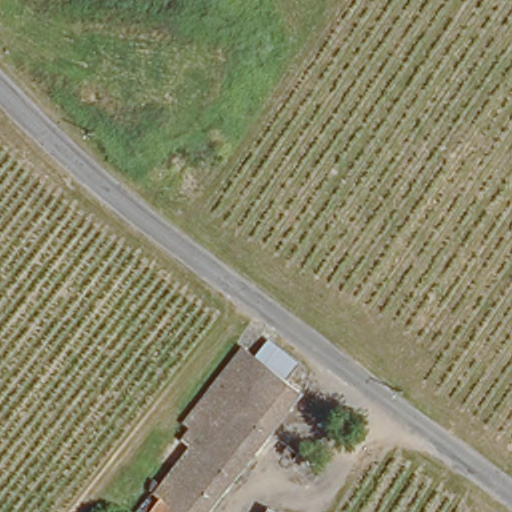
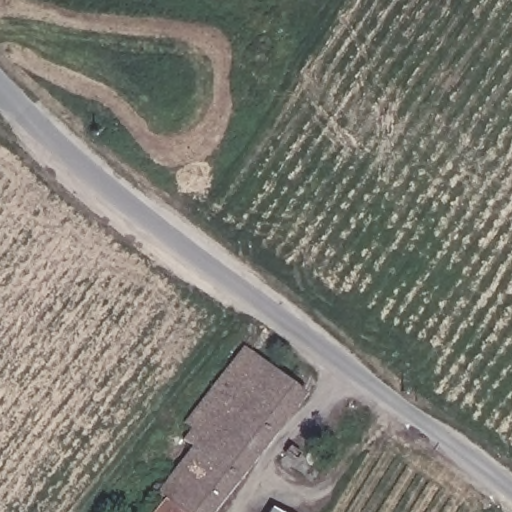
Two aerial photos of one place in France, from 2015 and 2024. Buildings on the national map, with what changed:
unchanged [(298,397),(207,512),(181,512),(141,485),(147,476),(153,479),(168,458),(172,461),(185,443),(175,437),(183,426),(179,423),(238,347),(250,357),(281,382),(298,397)]
unchanged [(134,512),(126,506),(141,485),(181,512),(134,512)]
unchanged [(279,512),(270,512),(272,508),(279,512)]

